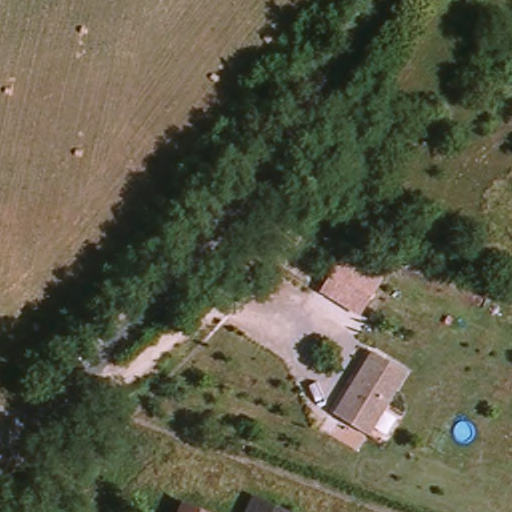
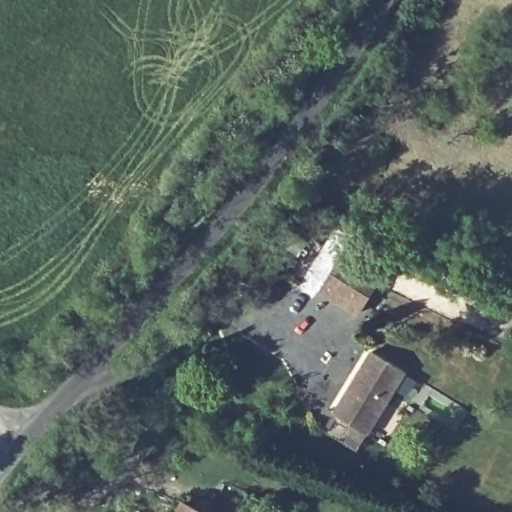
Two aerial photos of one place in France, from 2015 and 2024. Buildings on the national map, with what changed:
unchanged [(347,273),(332,292),(322,284),(336,264),(347,273)]
unchanged [(407,370),(370,432),(336,410),(373,349),(407,370)]
unchanged [(286,512),(245,512),(253,496),(286,512)]
unchanged [(200,512),(175,512),(179,503),(200,512)]

